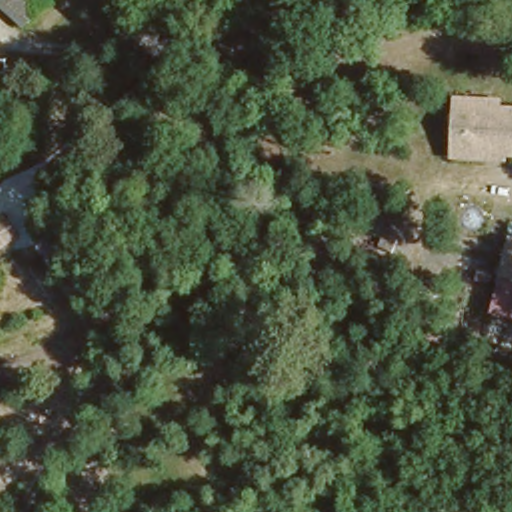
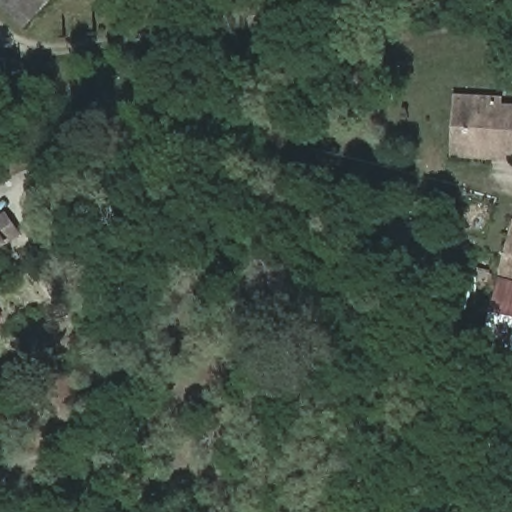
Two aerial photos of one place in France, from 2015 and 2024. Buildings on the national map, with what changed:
unchanged [(11,0),(28,0),(21,9),(11,0)]
unchanged [(0,93),(0,63),(1,62),(2,93),(0,93)]
unchanged [(451,125),(466,125),(466,104),(512,104),(512,149),(450,149),(451,136),(451,125)]
unchanged [(512,234),(512,287),(496,284),(511,234),(512,234)]

